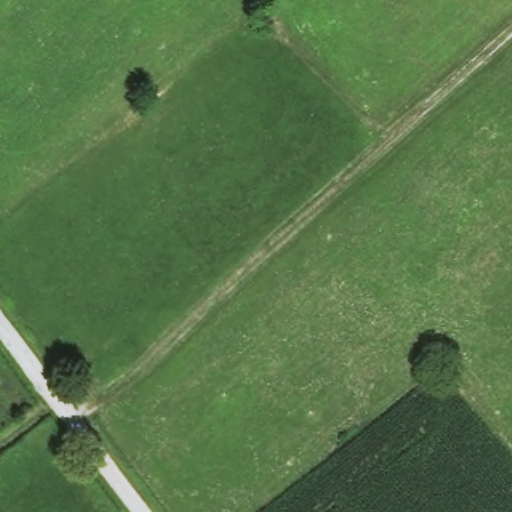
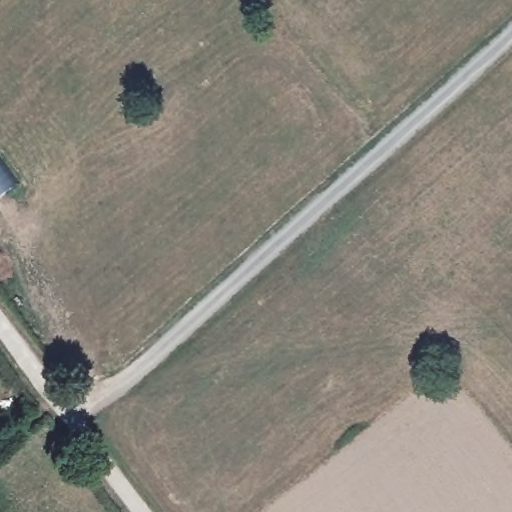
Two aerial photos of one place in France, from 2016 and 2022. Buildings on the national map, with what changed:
new [(0,201),(0,165),(17,189),(0,201)]
unchanged [(375,449),(351,465),(335,441),(358,426),(375,449)]

